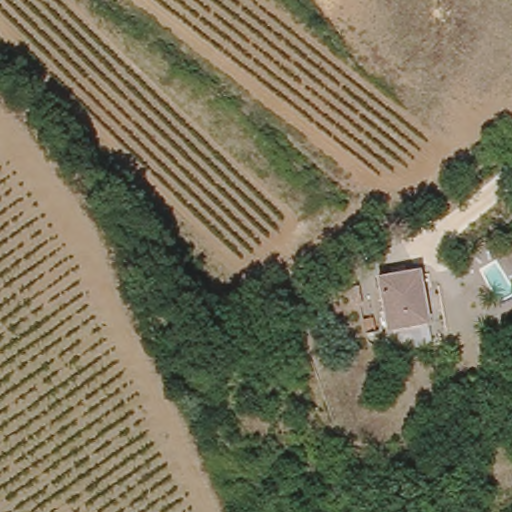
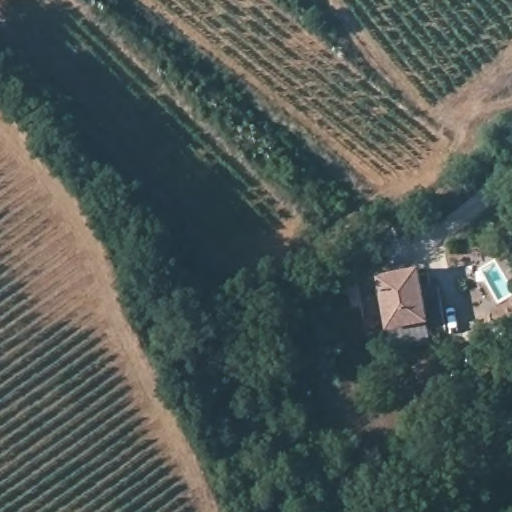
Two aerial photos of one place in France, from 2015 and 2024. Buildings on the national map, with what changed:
unchanged [(429,323),(393,327),(388,274),(424,270),(429,323)]

